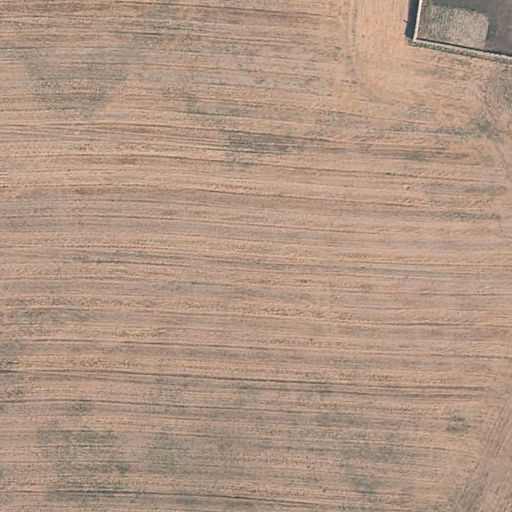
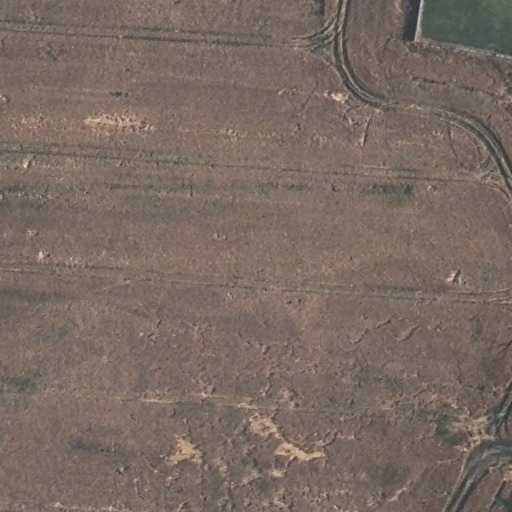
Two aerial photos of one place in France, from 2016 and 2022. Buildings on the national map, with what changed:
[]

